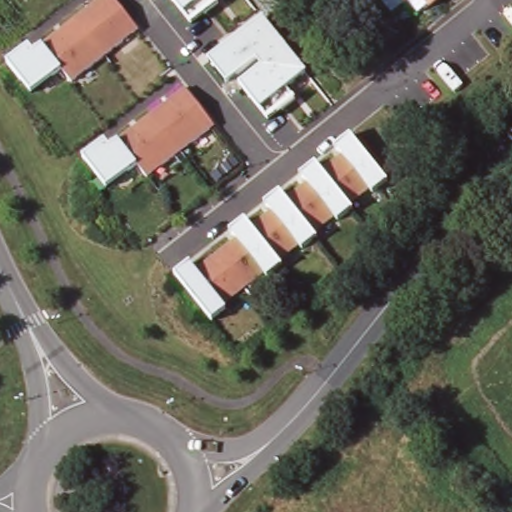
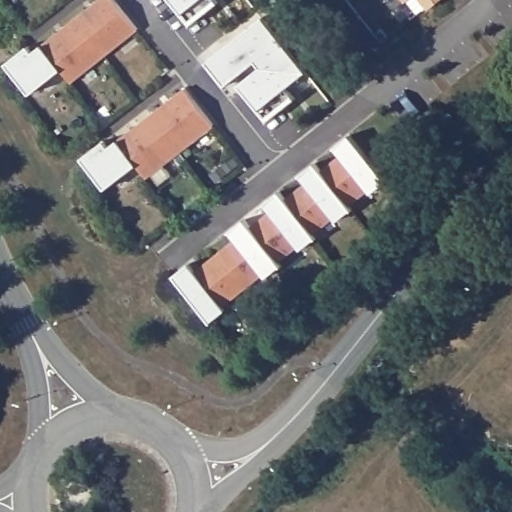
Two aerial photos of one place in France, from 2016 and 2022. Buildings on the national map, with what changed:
unchanged [(31,93),(6,61),(30,44),(35,49),(43,41),(96,0),(116,0),(140,27),(70,81),(60,69),(31,93)]
unchanged [(216,3),(190,24),(171,0),(214,0),(216,3)]
unchanged [(406,4),(403,0),(410,0),(406,4)]
unchanged [(420,0),(440,0),(428,10),(420,0)]
unchanged [(286,88),(295,98),(267,120),(240,85),(261,70),(255,64),(226,85),(207,60),(265,16),(306,72),(286,88)]
unchanged [(105,191),(82,159),(105,140),(110,146),(119,137),(185,86),(216,125),(147,179),(136,166),(105,191)]
unchanged [(211,323),(175,275),(191,261),(196,270),(231,242),(227,233),(246,220),(251,226),(266,215),(263,205),(280,192),(287,197),(303,185),(300,175),(316,164),(321,170),(340,155),(335,148),(352,134),(388,178),(372,192),(365,190),(350,202),(352,210),(338,221),(332,217),(312,232),(316,239),(303,250),(298,246),(279,260),(281,266),(267,278),(261,276),(224,303),(224,310),(211,323)]

